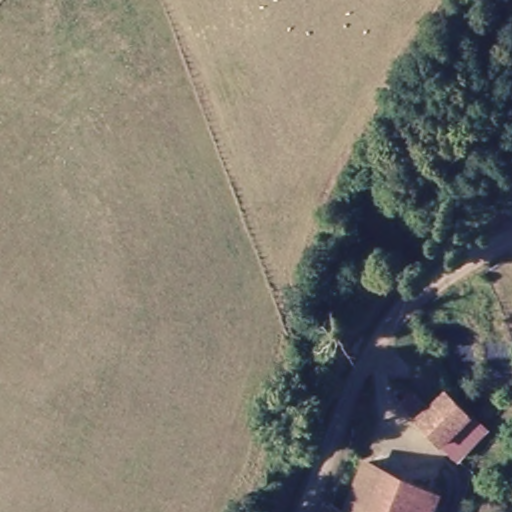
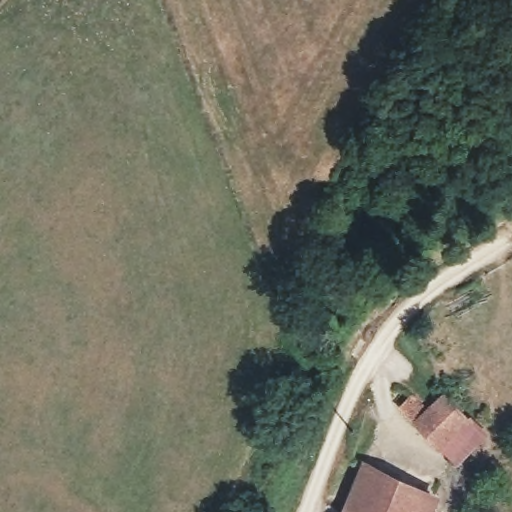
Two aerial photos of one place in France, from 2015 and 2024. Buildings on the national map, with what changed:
unchanged [(429,410),(447,392),(472,417),(458,430),(468,439),(451,457),(400,405),(413,394),(429,410)]
unchanged [(361,469),(436,499),(431,512),(343,512),(361,469)]

